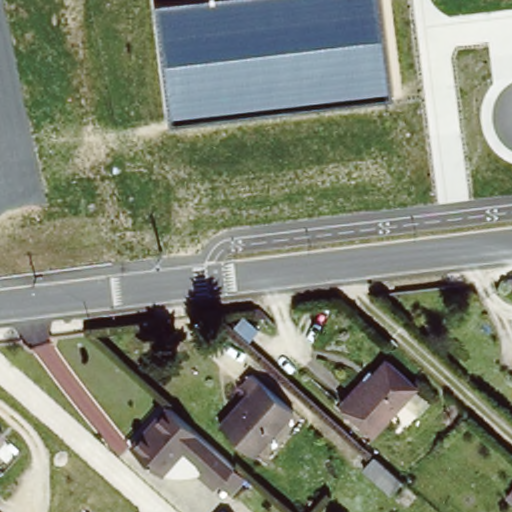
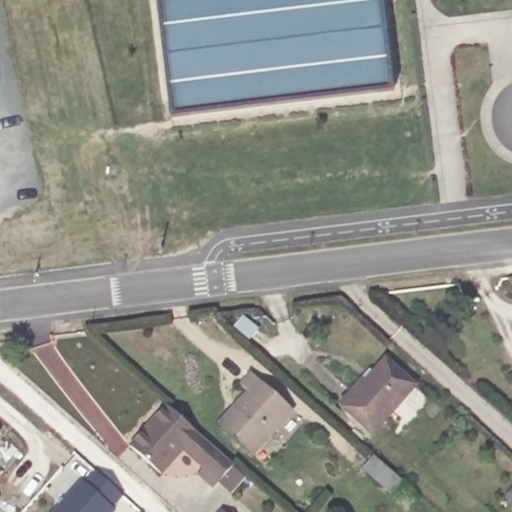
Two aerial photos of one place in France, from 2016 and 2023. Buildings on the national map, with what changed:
unchanged [(392,92),(173,119),(158,0),(380,0),(392,92)]
unchanged [(417,394),(404,411),(385,421),(385,429),(377,437),(340,404),(382,362),(417,394)]
unchanged [(260,455),(225,424),(235,412),(239,415),(259,394),(247,383),(258,372),(300,410),(260,455)]
unchanged [(228,484),(217,474),(212,479),(198,467),(203,461),(180,441),(160,466),(130,440),(166,398),(232,458),(243,467),(228,484)]
unchanged [(392,493),(365,467),(376,453),(405,479),(392,493)]
new [(85,481),(93,471),(122,496),(112,508),(115,511),(115,512),(54,512),(82,480),(85,481)]
unchanged [(221,512),(219,512),(220,511),(221,512)]

